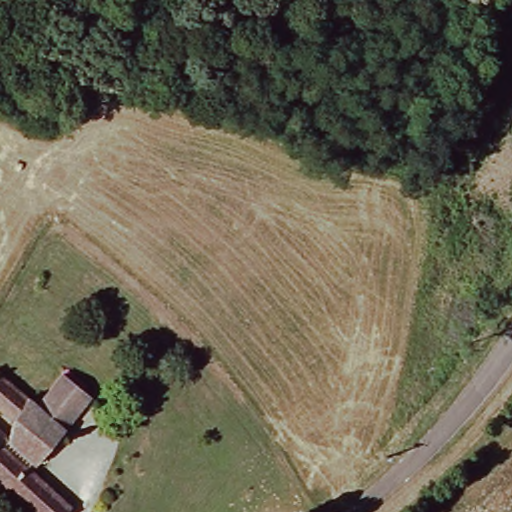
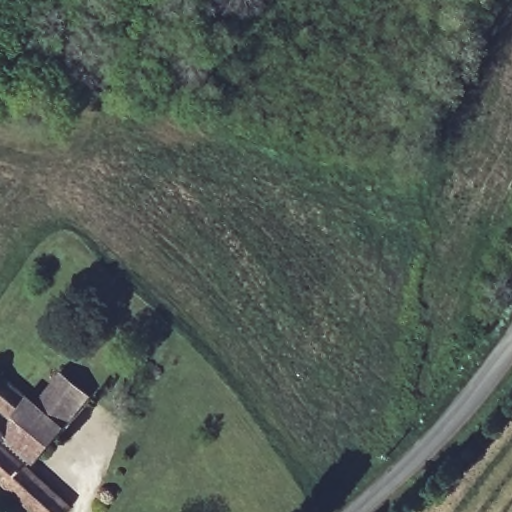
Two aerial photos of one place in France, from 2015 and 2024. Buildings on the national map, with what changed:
unchanged [(97,397),(69,432),(40,410),(68,375),(97,397)]
unchanged [(69,432),(42,466),(11,440),(3,449),(71,512),(29,512),(0,487),(0,378),(40,410),(69,432)]

